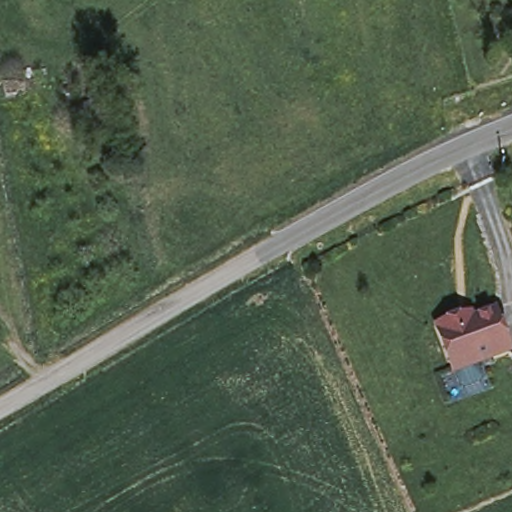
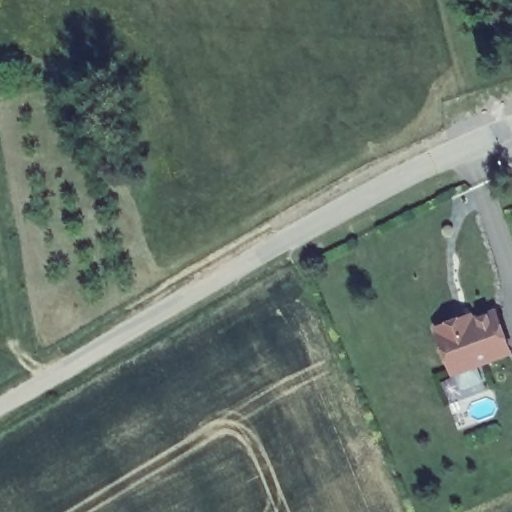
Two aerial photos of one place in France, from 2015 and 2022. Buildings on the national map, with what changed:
unchanged [(471,385),(466,387),(462,385),(456,368),(438,323),(450,319),(463,315),(465,321),(488,313),(501,353),(467,364),(473,381),(471,385)]

